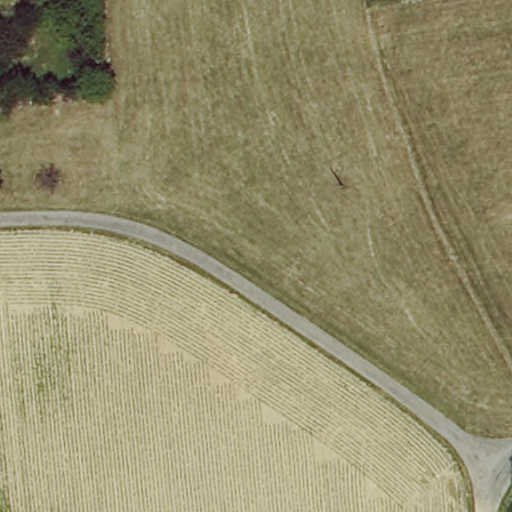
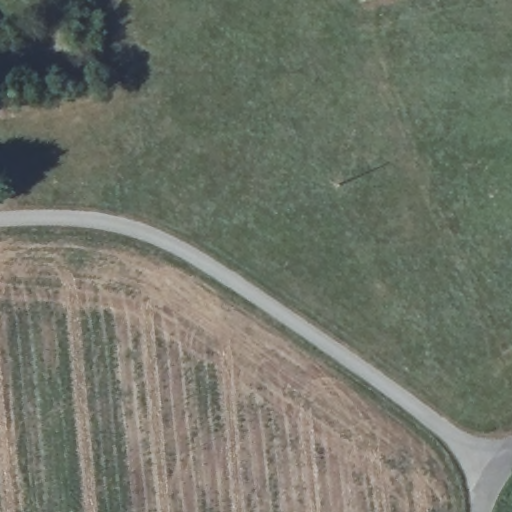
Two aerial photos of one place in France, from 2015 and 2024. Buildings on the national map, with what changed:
[]

